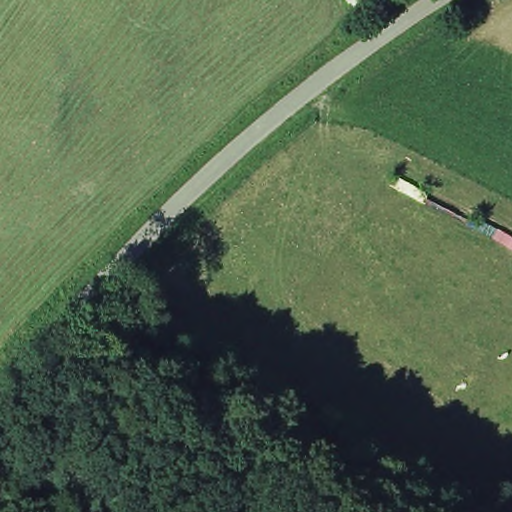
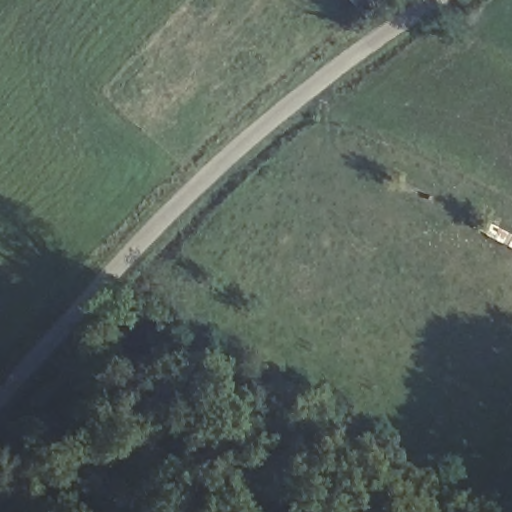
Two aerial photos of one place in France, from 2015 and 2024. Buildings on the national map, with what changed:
unchanged [(343,10),(337,0),(359,0),(343,10)]

